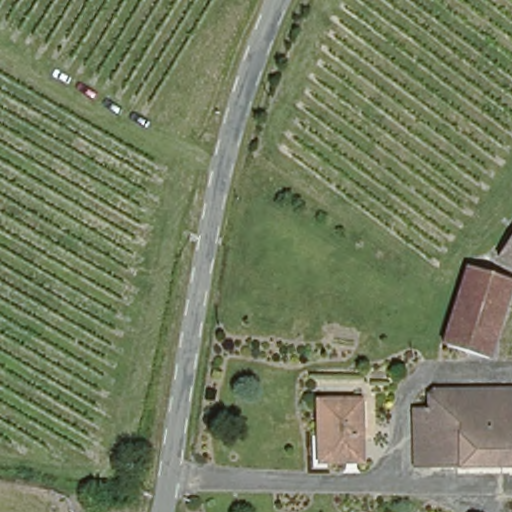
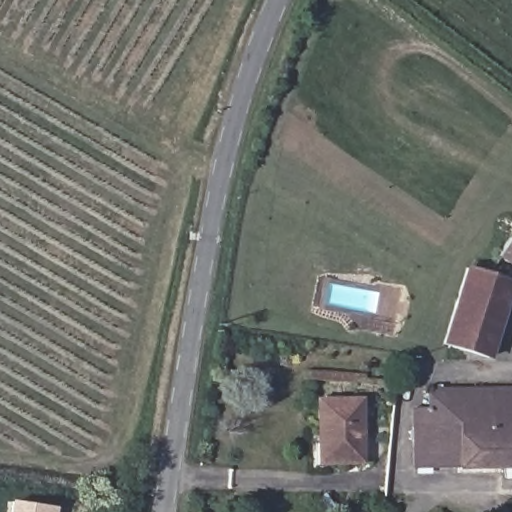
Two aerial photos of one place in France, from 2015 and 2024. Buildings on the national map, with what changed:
unchanged [(490,246),(511,213),(512,213),(512,268),(487,250),(490,246)]
unchanged [(446,335),(460,298),(470,274),(484,279),(511,288),(485,359),(439,343),(446,335)]
unchanged [(413,409),(427,410),(427,398),(443,399),(443,395),(512,395),(512,469),(415,469),(413,409)]
unchanged [(360,460),(322,461),(322,436),(316,436),(317,403),(360,403),(360,460)]
new [(7,512),(9,500),(56,507),(56,512),(7,512)]
unchanged [(484,510),(472,510),(471,503),(484,502),(484,510)]

